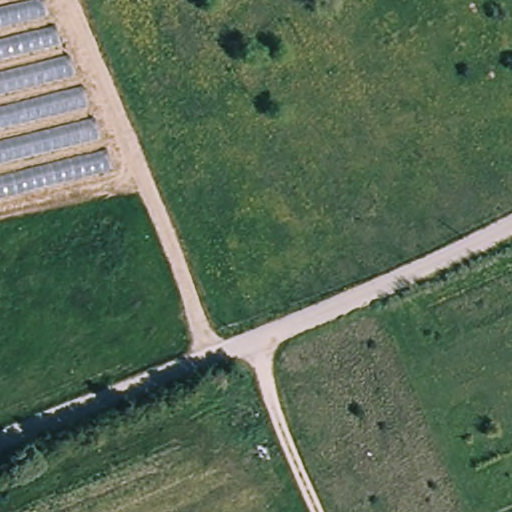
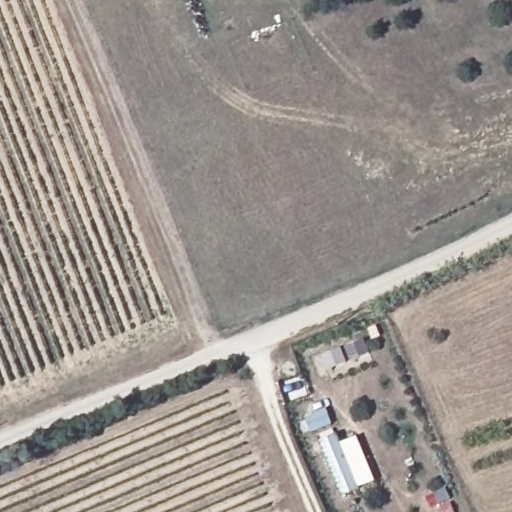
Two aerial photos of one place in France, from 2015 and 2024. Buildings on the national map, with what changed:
demolished [(43,0),(50,26),(62,26),(117,166),(0,194),(0,0),(43,0)]
new [(320,443),(338,435),(341,443),(358,437),(377,483),(343,497),(320,443)]

